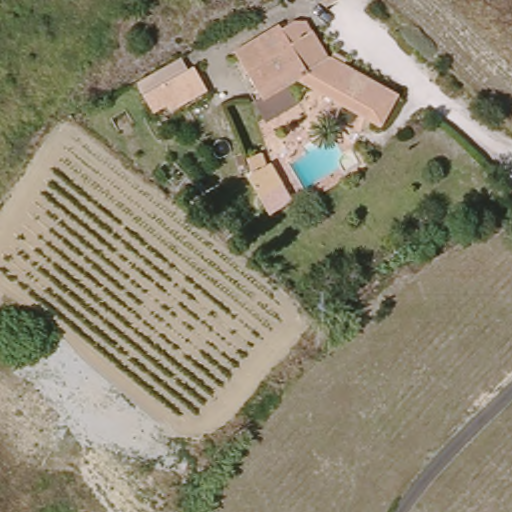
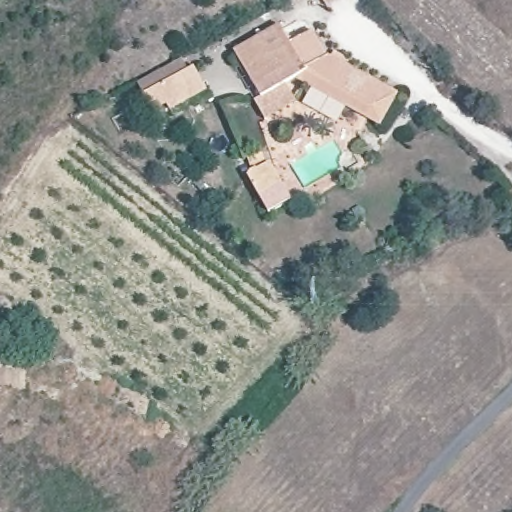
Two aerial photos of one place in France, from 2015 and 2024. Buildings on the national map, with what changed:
unchanged [(328,7),(324,0),(344,0),(328,7)]
unchanged [(264,117),(254,95),(261,92),(238,40),(264,29),(286,19),(296,36),(321,26),(333,53),(338,52),(407,94),(387,122),(356,105),(316,82),(303,74),(281,83),(293,105),(264,117)]
unchanged [(143,93),(158,85),(196,64),(211,90),(173,111),(168,105),(153,114),(143,93)]
unchanged [(270,163),(292,202),(267,213),(244,175),(270,163)]

